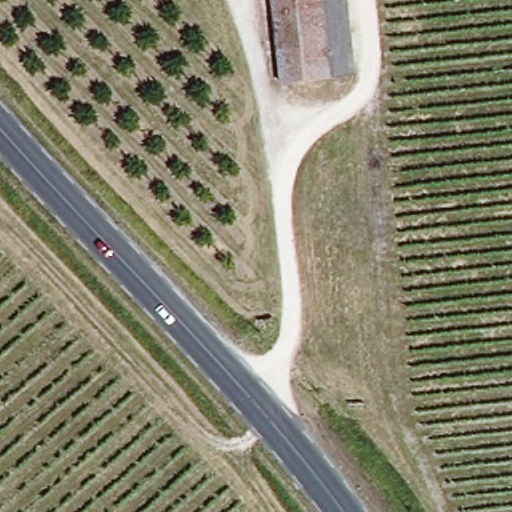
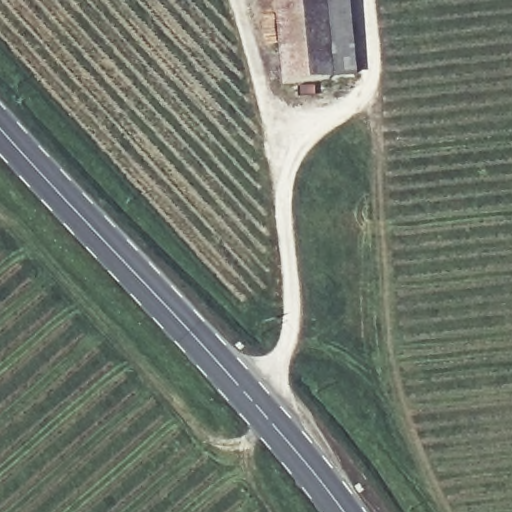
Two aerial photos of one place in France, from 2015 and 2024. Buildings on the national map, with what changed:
unchanged [(280,79),(278,77),(271,0),(327,0),(334,77),(280,79)]
unchanged [(361,75),(334,77),(327,0),(353,0),(361,75)]

